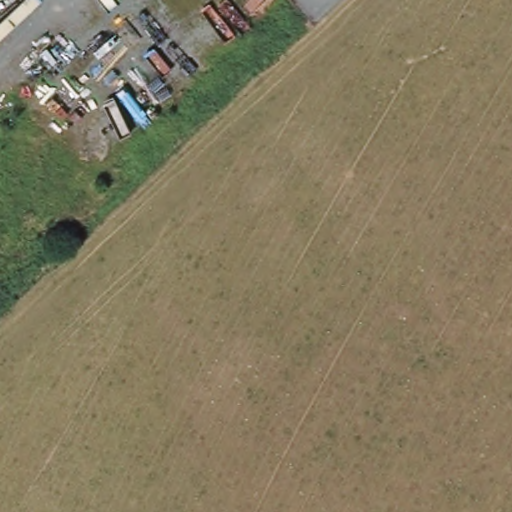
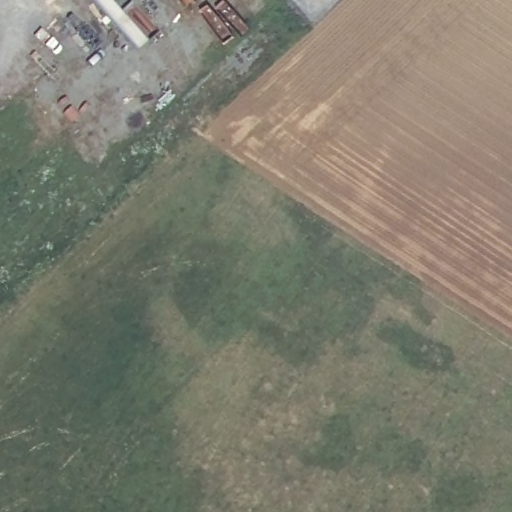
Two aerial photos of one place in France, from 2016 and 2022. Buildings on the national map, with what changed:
[]

